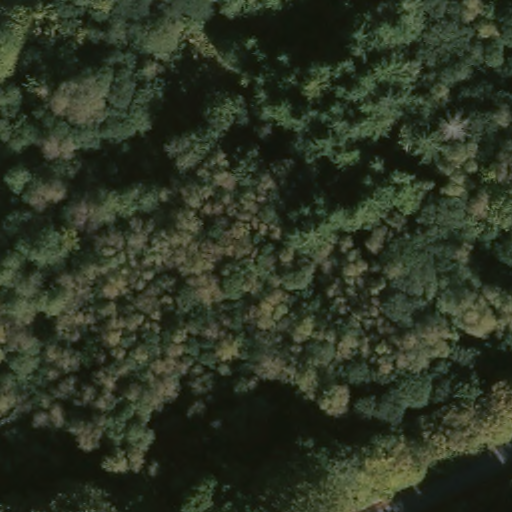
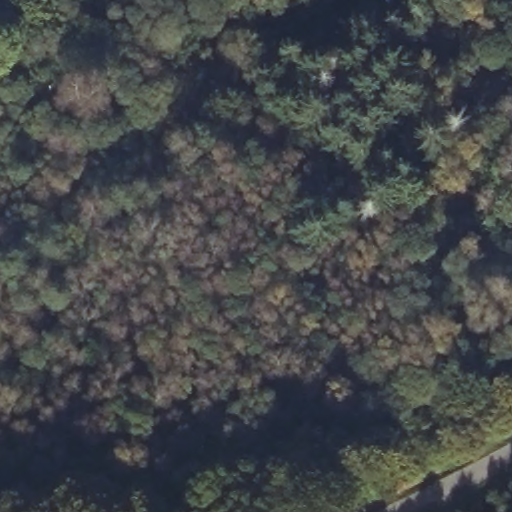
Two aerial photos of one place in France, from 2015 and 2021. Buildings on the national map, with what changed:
[]

